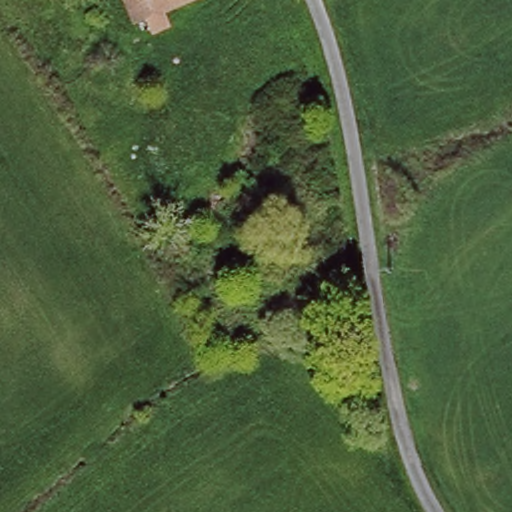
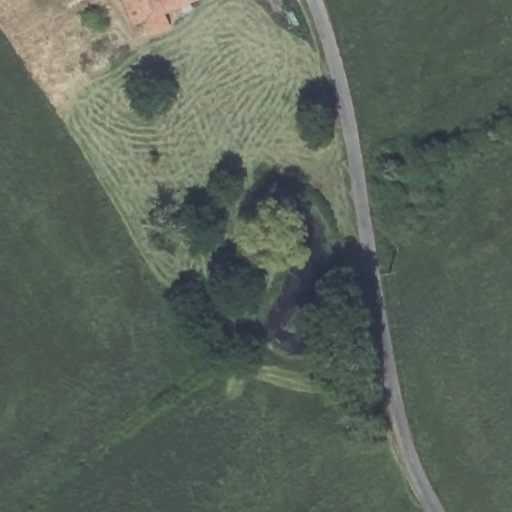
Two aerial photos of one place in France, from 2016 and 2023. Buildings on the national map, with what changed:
unchanged [(151,20),(149,24),(145,26),(144,27),(141,29),(137,30),(133,30),(132,30),(127,29),(123,26),(120,23),(117,19),(116,16),(113,0),(178,0),(152,14),(151,20)]

